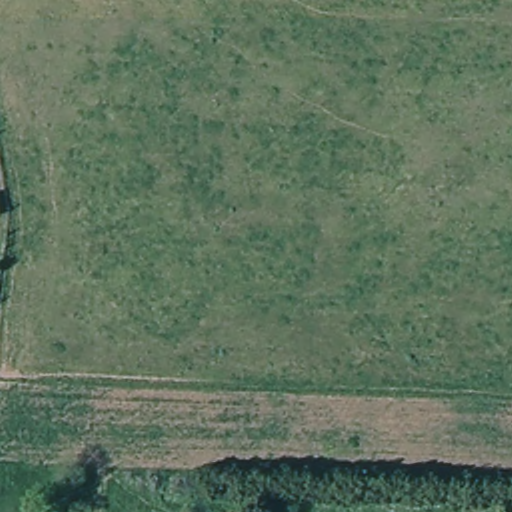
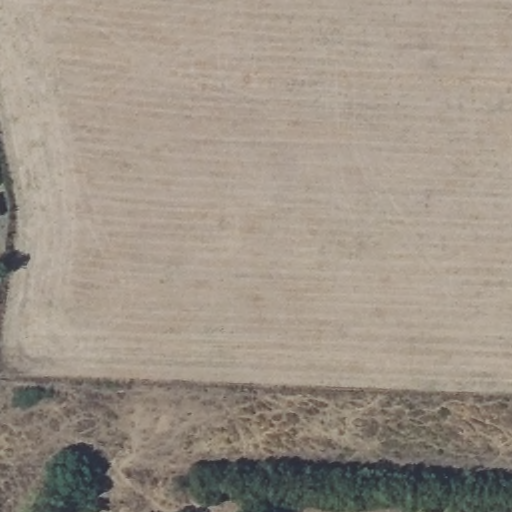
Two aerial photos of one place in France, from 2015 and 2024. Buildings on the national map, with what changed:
unchanged [(0,213),(0,207),(1,212),(0,213)]

